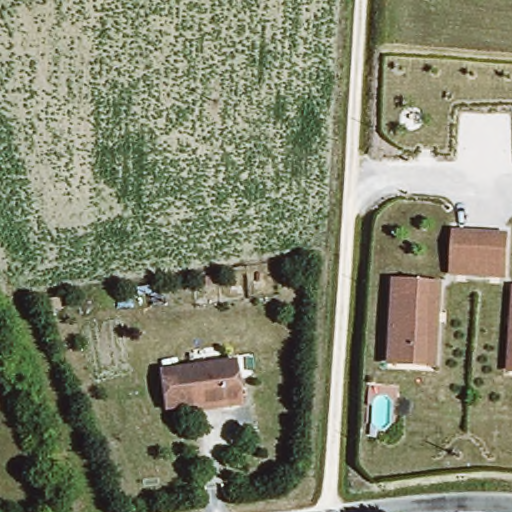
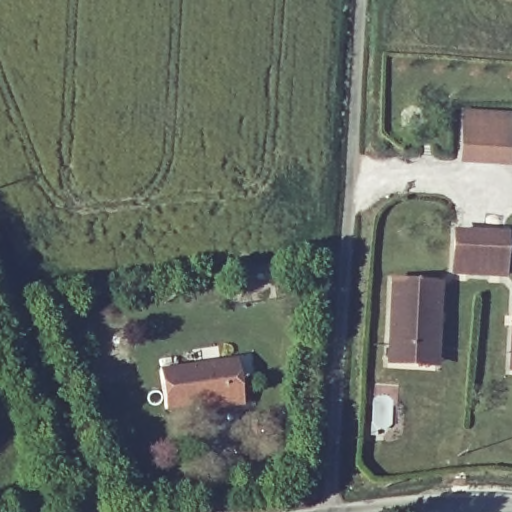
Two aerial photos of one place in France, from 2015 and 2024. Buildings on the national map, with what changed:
new [(462,109),(512,112),(512,133),(509,167),(458,165),(462,109)]
unchanged [(496,272),(466,269),(447,268),(449,227),(469,230),(499,231),(496,272)]
unchanged [(382,358),(384,343),(386,276),(434,280),(431,346),(431,361),(382,358)]
unchanged [(63,296),(47,298),(45,286),(61,284),(63,296)]
unchanged [(504,370),(506,355),(508,289),(512,289),(512,370),(504,370)]
unchanged [(191,405),(160,409),(155,370),(233,362),(237,404),(220,406),(192,410),(191,405)]

